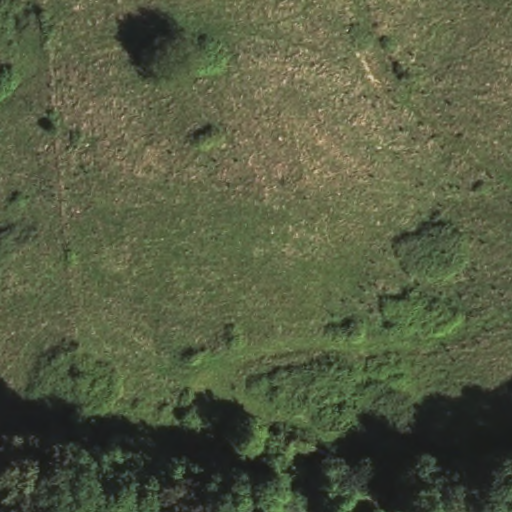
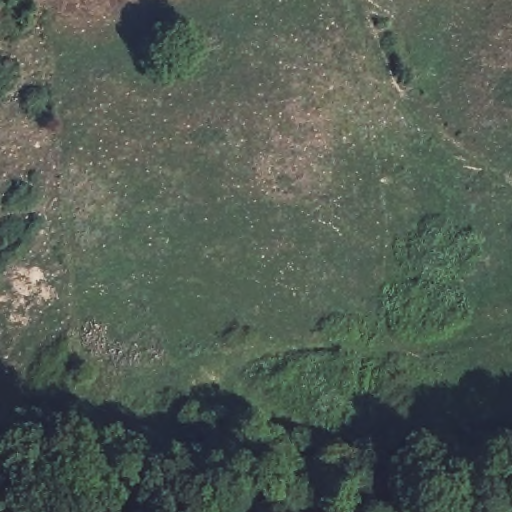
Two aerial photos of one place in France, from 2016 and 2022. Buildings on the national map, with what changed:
unchanged [(334,447),(329,477),(287,468),(291,436),(334,447)]

